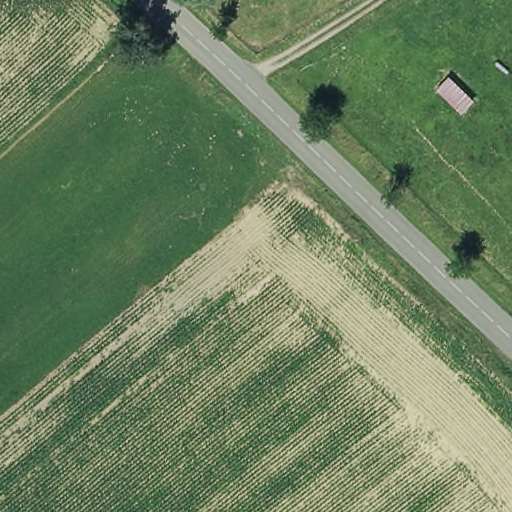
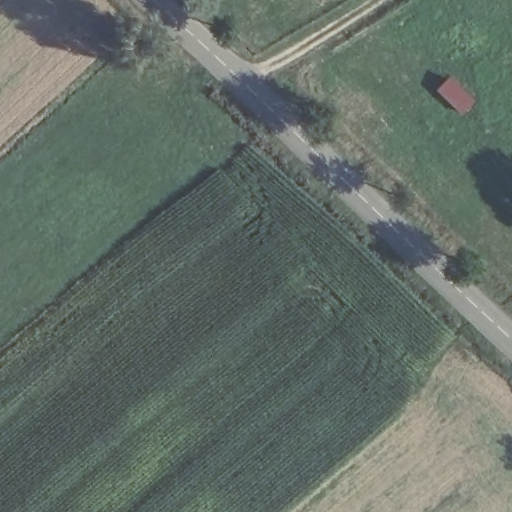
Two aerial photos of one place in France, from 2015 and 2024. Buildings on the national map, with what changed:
unchanged [(460,115),(437,90),(450,78),(473,102),(460,115)]

